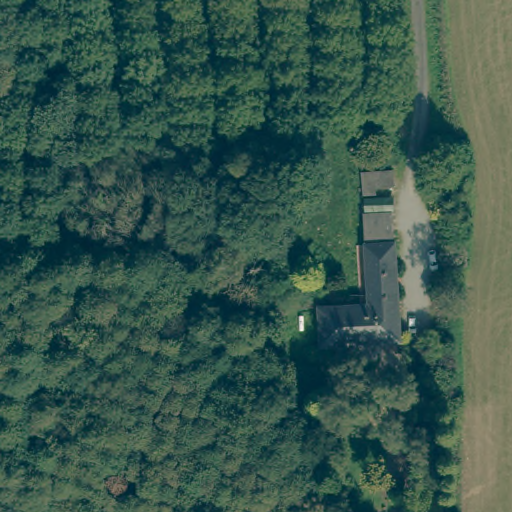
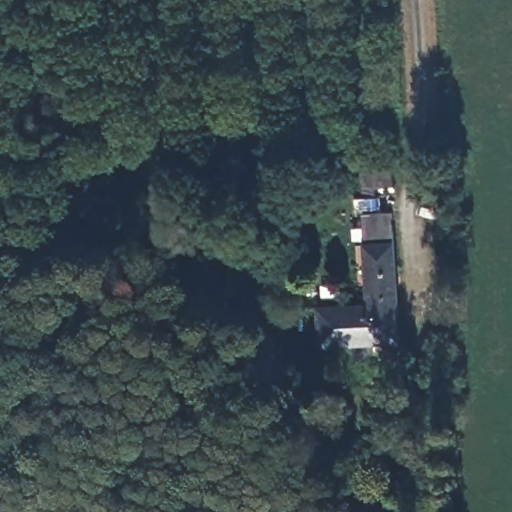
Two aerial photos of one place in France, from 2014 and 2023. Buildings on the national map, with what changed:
unchanged [(390,188),(374,190),(374,198),(361,199),(360,176),(390,173),(390,188)]
unchanged [(396,338),(320,342),(318,304),(367,300),(362,211),(390,210),(396,338)]

